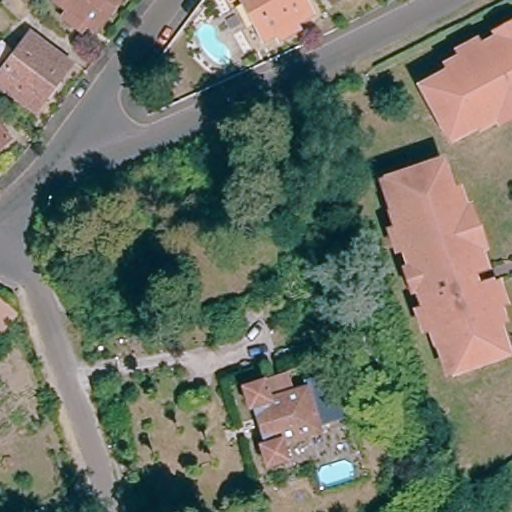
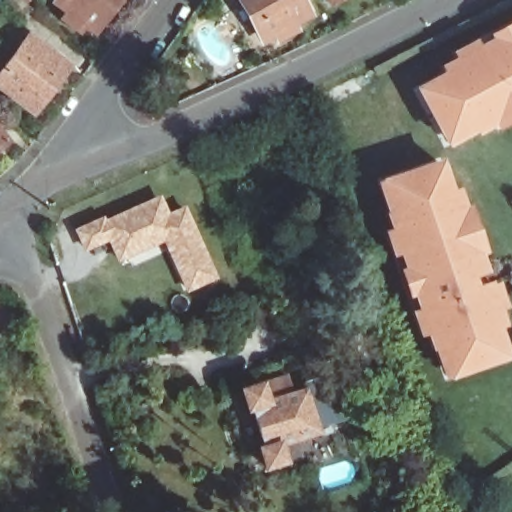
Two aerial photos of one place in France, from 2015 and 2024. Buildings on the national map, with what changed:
unchanged [(22,0),(33,10),(22,21),(3,2),(5,0),(22,0)]
unchanged [(122,0),(96,34),(81,21),(76,27),(68,21),(72,16),(57,5),(61,0),(122,0)]
unchanged [(298,23),(302,30),(290,35),(284,29),(268,40),(247,0),(304,0),(312,15),(298,23)]
unchanged [(350,0),(355,0),(351,2),(350,0)]
unchanged [(439,71),(474,53),(496,40),(511,32),(512,32),(512,113),(491,125),(473,134),(472,132),(468,126),(441,141),(414,92),(442,77),(439,71)]
unchanged [(71,68),(36,113),(0,87),(0,83),(33,39),(71,68)]
unchanged [(0,146),(0,134),(6,141),(0,146)]
unchanged [(436,167),(446,196),(452,195),(459,214),(480,275),(467,280),(470,291),(484,286),(498,327),(492,330),(502,360),(450,377),(440,348),(433,350),(431,351),(391,234),(385,218),(387,217),(394,215),(384,185),(436,167)]
new [(163,242),(119,262),(109,241),(84,252),(74,228),(105,215),(106,219),(161,195),(169,213),(186,205),(218,277),(188,292),(163,242)]
new [(6,292),(16,300),(0,324),(0,293),(3,295),(6,292)]
unchanged [(378,330),(379,333),(384,356),(365,361),(360,338),(359,334),(378,330)]
unchanged [(294,375),(298,391),(311,387),(313,387),(315,388),(316,388),(318,390),(319,390),(320,392),(323,392),(331,423),(320,425),(322,432),(284,441),(288,457),(269,462),(263,439),(265,438),(259,408),(255,409),(250,385),(294,375)]

